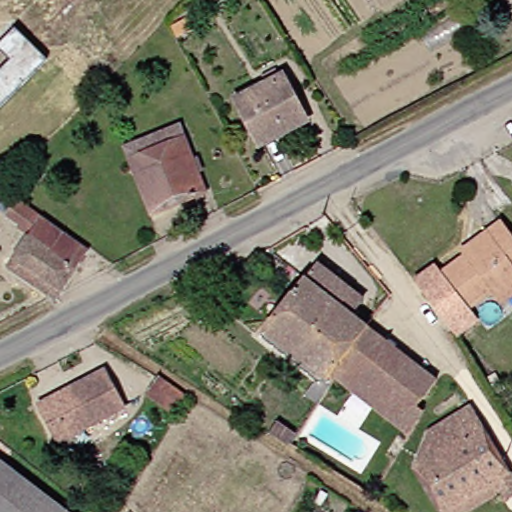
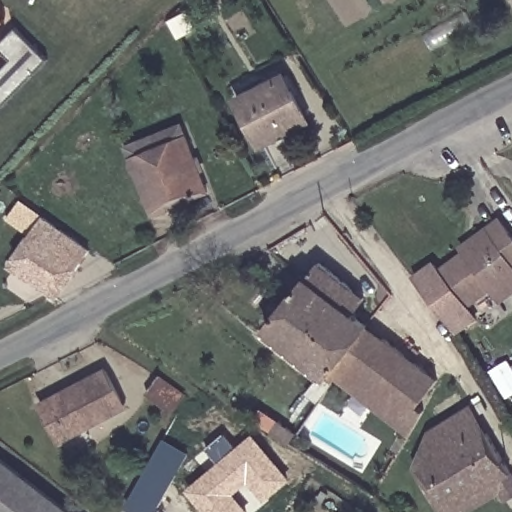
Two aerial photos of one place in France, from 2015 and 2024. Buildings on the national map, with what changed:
unchanged [(0,48),(0,42),(15,28),(45,58),(0,106),(0,70),(10,58),(0,48)]
unchanged [(252,146),(231,99),(276,78),(297,124),(252,146)]
unchanged [(140,209),(117,147),(178,124),(200,187),(140,209)]
unchanged [(505,297),(494,281),(480,292),(473,297),(447,262),(453,257),(468,246),(463,238),(478,227),(500,212),(512,229),(512,292),(505,297)]
unchanged [(50,294),(2,264),(32,215),(80,246),(50,294)]
unchanged [(447,262),(473,297),(480,292),(489,303),(471,319),(427,266),(447,250),(453,257),(447,262)]
unchanged [(261,327),(300,275),(311,261),(345,287),(335,301),(362,322),(325,375),(331,379),(310,403),(299,393),(311,379),(291,363),(255,337),(261,327)]
unchanged [(362,322),(429,373),(412,397),(418,402),(400,433),(332,378),(331,379),(325,375),(362,322)]
unchanged [(50,436),(34,404),(97,371),(114,403),(50,436)]
unchanged [(150,399),(162,380),(185,394),(173,413),(150,399)]
unchanged [(448,414),(463,406),(477,429),(500,468),(434,509),(408,465),(421,429),(448,414)]
unchanged [(286,416),(301,431),(292,443),(275,427),(286,416)]
new [(204,512),(185,489),(218,462),(208,450),(225,435),(235,447),(251,434),(289,479),(262,500),(248,482),(235,493),(249,512),(204,512)]
new [(165,436),(191,451),(157,512),(137,512),(127,506),(165,436)]
unchanged [(65,512),(0,512),(0,464),(65,512)]
unchanged [(495,496),(490,489),(453,512),(436,512),(434,509),(500,468),(511,486),(495,496)]

